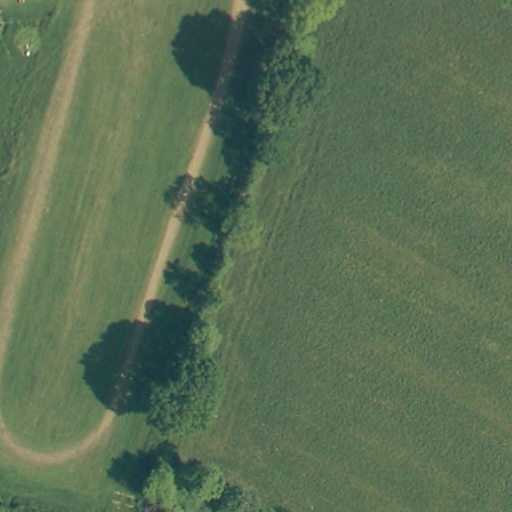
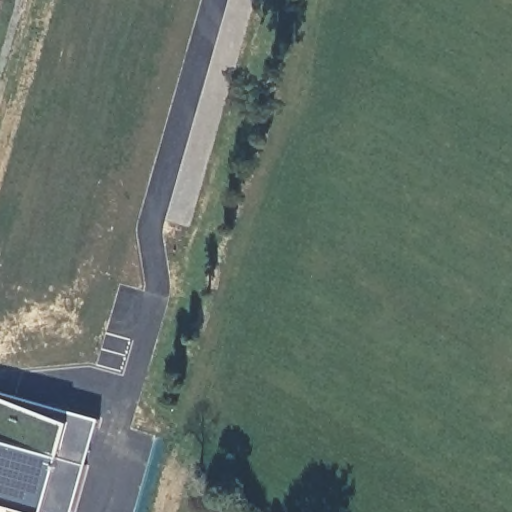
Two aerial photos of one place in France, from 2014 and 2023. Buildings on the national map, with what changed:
new [(72,512),(34,512),(0,502),(0,391),(99,420),(72,512)]

